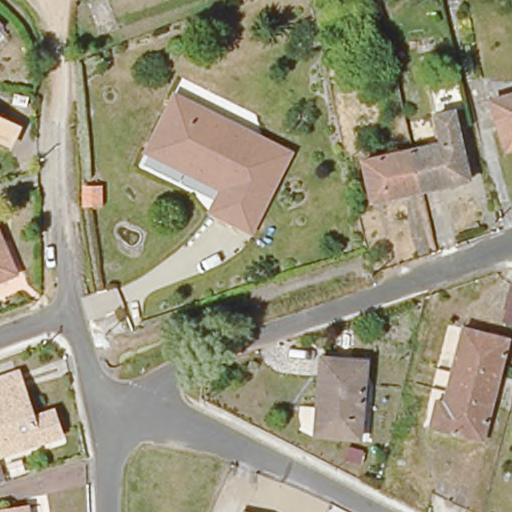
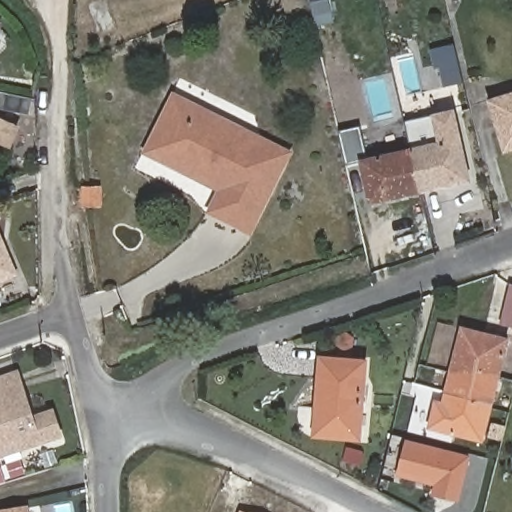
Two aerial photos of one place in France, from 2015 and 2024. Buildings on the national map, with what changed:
unchanged [(322,27),(315,1),(317,0),(333,0),(339,22),(322,27)]
unchanged [(0,28),(0,25),(1,26),(0,28)]
new [(18,115),(2,111),(0,110),(0,91),(6,92),(22,96),(32,99),(28,117),(18,115)]
unchanged [(255,226),(216,207),(227,185),(152,147),(180,92),(295,149),(255,226)]
unchanged [(506,151),(491,102),(512,95),(512,149),(506,151)]
unchanged [(446,144),(440,117),(459,112),(473,180),(428,190),(418,150),(446,144)]
unchanged [(9,145),(0,141),(0,121),(16,129),(9,145)]
unchanged [(377,202),(368,162),(418,150),(428,190),(377,202)]
unchanged [(85,204),(85,189),(100,189),(100,204),(85,204)]
unchanged [(2,251),(15,278),(0,284),(0,234),(6,249),(2,251)]
unchanged [(506,328),(510,312),(502,311),(508,290),(512,291),(512,330),(506,328)]
unchanged [(487,442),(432,428),(438,402),(449,405),(466,329),(510,341),(487,442)]
unchanged [(320,410),(325,361),(368,365),(360,442),(325,438),(316,437),(320,410)]
unchanged [(53,416),(60,438),(1,460),(0,457),(0,385),(17,379),(31,423),(53,416)]
new [(471,456),(460,502),(432,496),(434,486),(396,477),(405,439),(471,456)]
unchanged [(0,490),(0,465),(9,487),(0,490)]
demolished [(394,498),(400,486),(418,495),(413,507),(394,498)]

